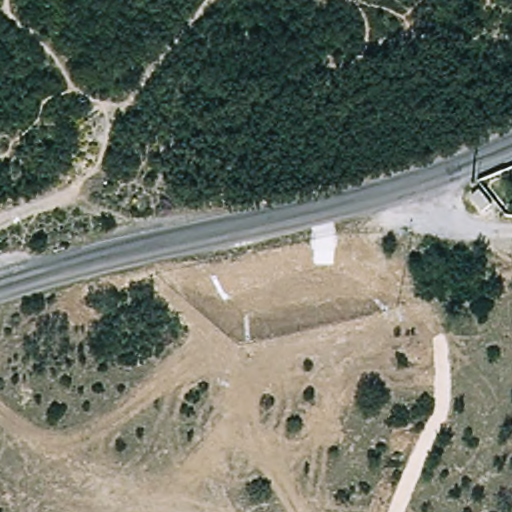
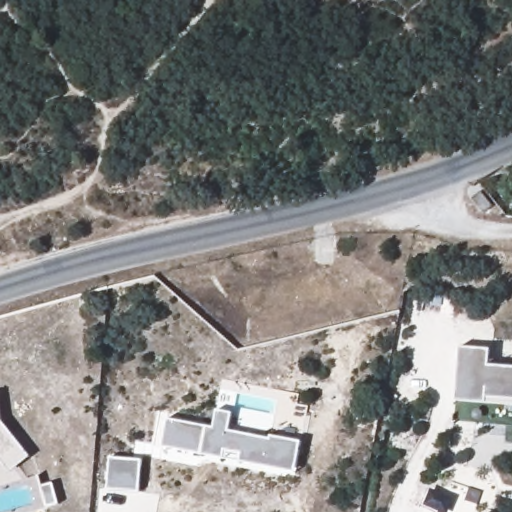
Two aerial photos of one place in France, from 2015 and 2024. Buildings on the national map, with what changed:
new [(460,351),(490,355),(488,371),(512,375),(512,407),(482,403),(482,408),(452,404),(454,389),(460,351)]
new [(6,469),(0,462),(0,398),(2,397),(4,425),(26,452),(33,460),(12,476),(6,469)]
new [(200,453),(160,445),(165,416),(212,426),(215,408),(231,411),(227,429),(269,437),(269,434),(300,440),(294,467),(294,471),(200,453)]
new [(109,455),(141,458),(137,490),(105,486),(109,455)]
new [(55,486),(62,508),(49,511),(43,490),(55,486)]

